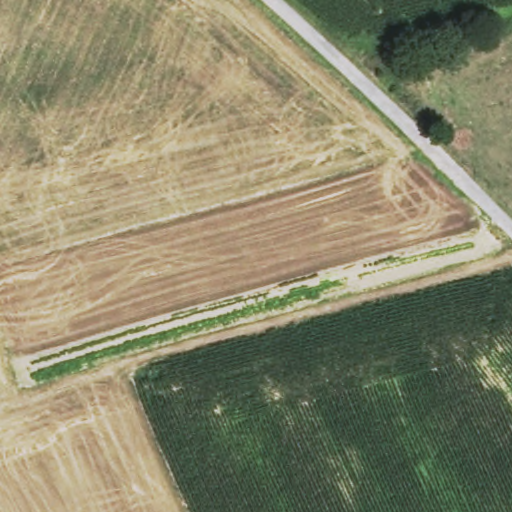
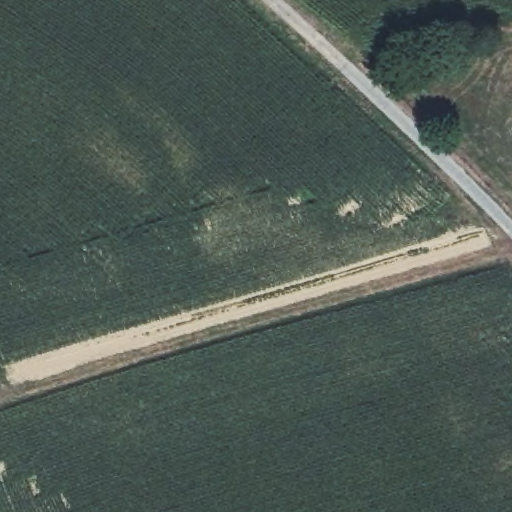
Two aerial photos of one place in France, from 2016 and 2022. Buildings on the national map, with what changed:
[]

